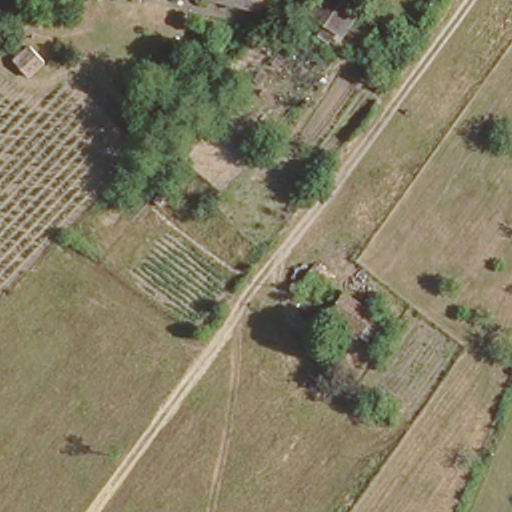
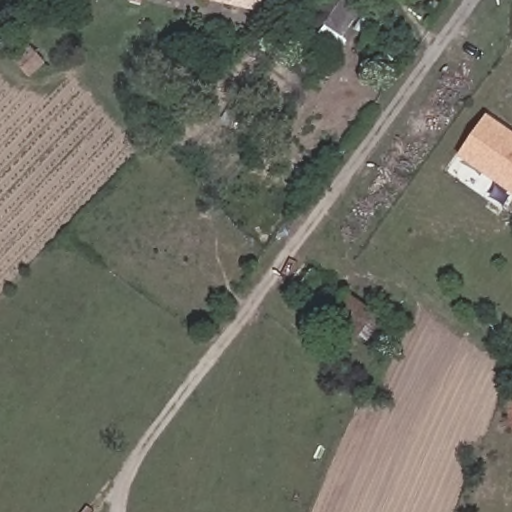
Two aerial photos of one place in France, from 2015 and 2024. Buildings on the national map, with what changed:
unchanged [(261,7),(230,0),(262,0),(261,7)]
unchanged [(329,0),(350,0),(356,4),(338,33),(316,19),(329,0)]
new [(487,114),(512,131),(512,195),(458,157),(487,114)]
unchanged [(346,328),(311,304),(327,282),(395,330),(376,358),(342,334),(346,328)]

